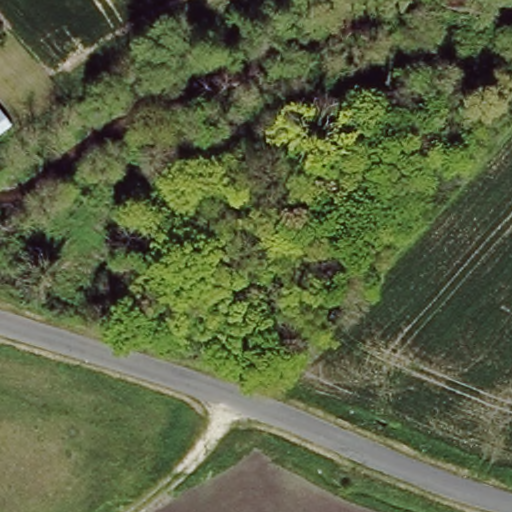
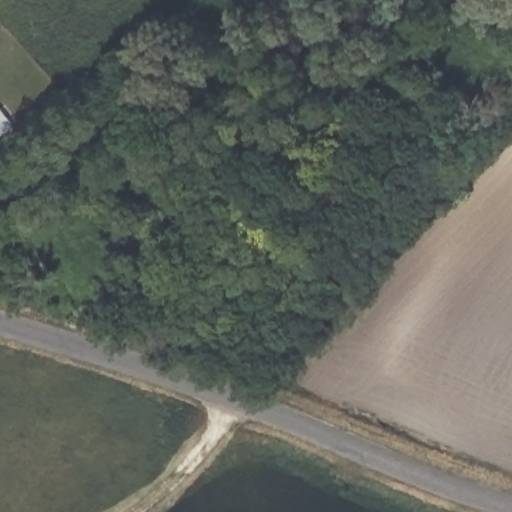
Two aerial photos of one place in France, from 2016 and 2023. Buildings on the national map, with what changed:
unchanged [(0,136),(0,109),(13,126),(0,136)]

